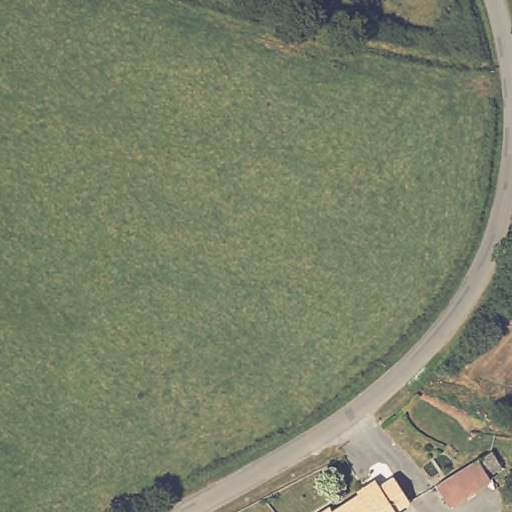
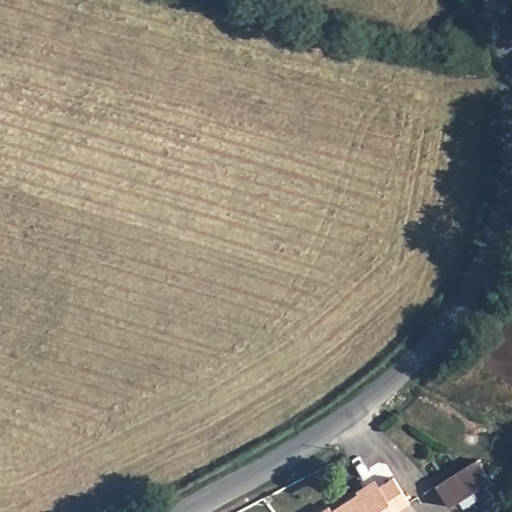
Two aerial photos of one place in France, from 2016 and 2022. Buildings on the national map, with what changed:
unchanged [(448,508),(436,488),(476,463),(489,483),(448,508)]
unchanged [(308,508),(329,495),(332,499),(377,474),(379,477),(393,470),(410,503),(397,511),(398,512),(311,512),(308,508)]

